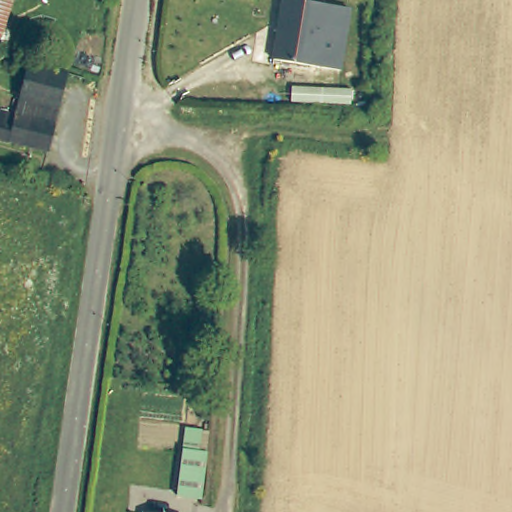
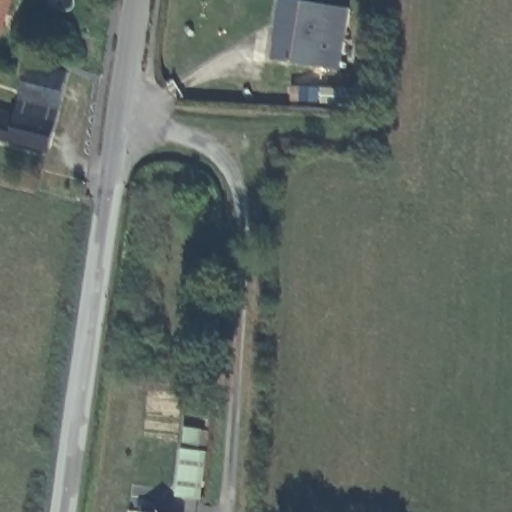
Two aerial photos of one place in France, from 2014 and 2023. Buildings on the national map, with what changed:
unchanged [(0,33),(0,0),(10,0),(0,33)]
unchanged [(270,0),(287,0),(337,6),(330,66),(263,58),(270,0)]
unchanged [(29,66),(66,75),(55,124),(17,115),(29,66)]
unchanged [(0,138),(0,111),(17,115),(55,124),(49,150),(0,138)]
unchanged [(174,486),(182,443),(203,447),(196,490),(174,488),(174,486)]

